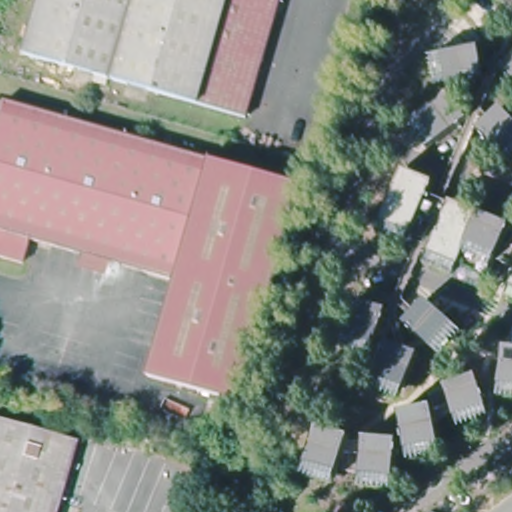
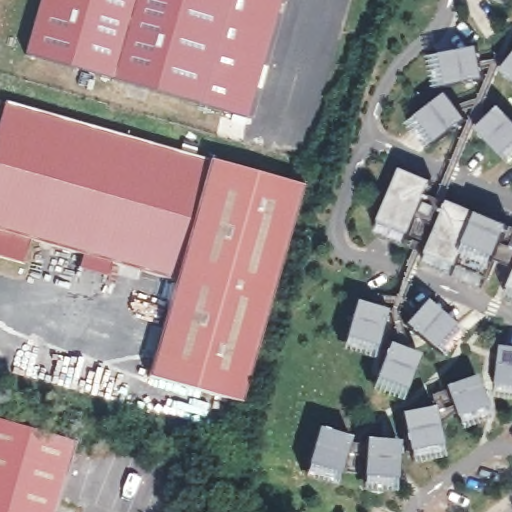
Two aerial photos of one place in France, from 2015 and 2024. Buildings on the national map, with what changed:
unchanged [(25,56),(38,0),(278,0),(249,114),(25,56)]
unchanged [(482,82),(445,89),(439,55),(477,49),(482,82)]
unchanged [(503,74),(512,63),(512,81),(503,74)]
unchanged [(445,95),(465,122),(435,145),(415,118),(445,95)]
unchanged [(293,180),(231,398),(150,376),(175,279),(31,240),(25,262),(0,257),(0,106),(1,102),(293,180)]
unchanged [(510,165),(483,136),(507,114),(512,118),(512,163),(510,165)]
unchanged [(435,187),(413,237),(382,224),(402,174),(435,187)]
unchanged [(437,209),(433,218),(424,214),(428,205),(437,209)]
unchanged [(512,232),(491,281),(429,256),(450,206),(512,232)]
unchanged [(357,301),(388,311),(377,348),(346,338),(357,301)]
unchanged [(456,326),(433,351),(405,326),(427,301),(456,326)]
unchanged [(390,343),(421,356),(406,391),(376,380),(390,343)]
unchanged [(505,347),(512,348),(512,388),(500,386),(505,347)]
unchanged [(452,415),(440,383),(472,371),(484,402),(452,415)]
unchanged [(409,453),(402,415),(434,408),(442,446),(409,453)]
unchanged [(54,512),(0,512),(0,424),(72,442),(54,512)]
unchanged [(352,438),(341,475),(307,466),(318,429),(352,438)]
unchanged [(366,440),(400,442),(397,481),(363,479),(366,440)]

